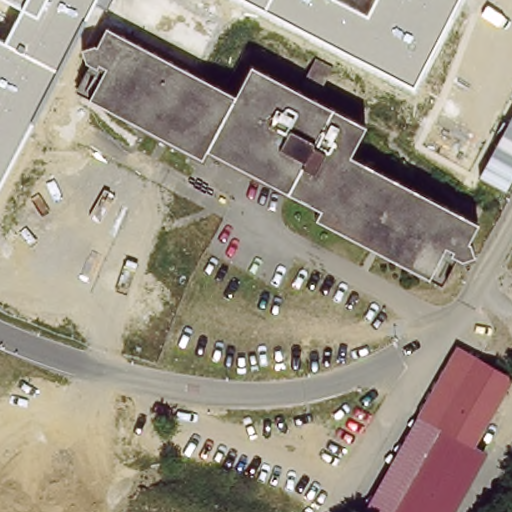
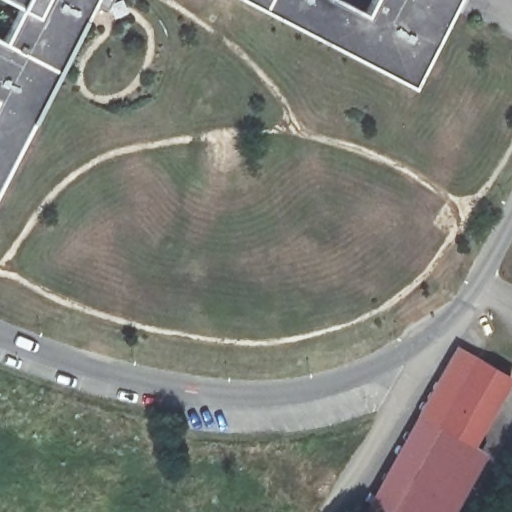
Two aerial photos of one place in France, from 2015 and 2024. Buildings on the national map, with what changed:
unchanged [(108,7),(94,1),(0,182),(0,0),(111,0),(108,7)]
unchanged [(237,0),(463,0),(415,91),(237,0)]
demolished [(320,217),(328,205),(212,147),(208,155),(80,88),(95,60),(85,43),(101,42),(107,28),(237,96),(240,91),(357,152),(353,159),(424,197),(393,256),(320,217)]
demolished [(240,91),(254,68),(304,94),(307,90),(321,96),(318,102),(370,130),(357,152),(240,91)]
demolished [(508,154),(512,156),(512,170),(503,165),(508,154)]
demolished [(424,197),(479,226),(469,242),(476,257),(464,262),(460,260),(447,285),(393,256),(424,197)]
unchanged [(419,413),(459,345),(512,373),(512,384),(477,447),(419,413)]
unchanged [(453,512),(371,512),(366,508),(419,413),(477,447),(487,453),(453,512)]

